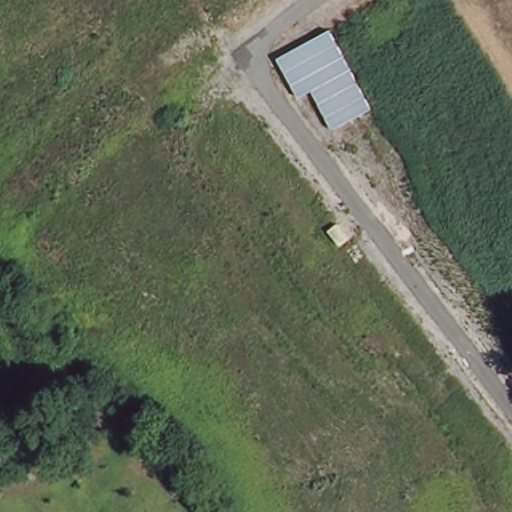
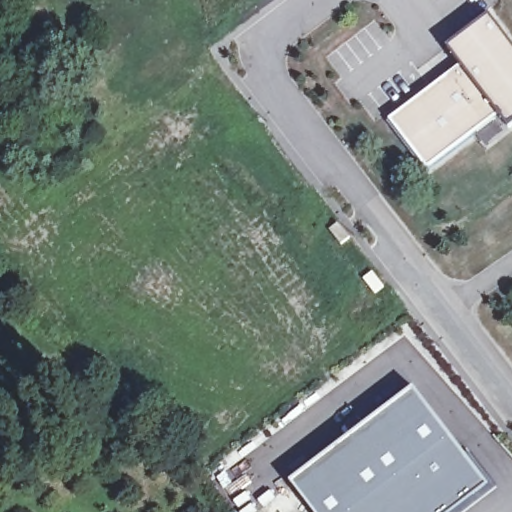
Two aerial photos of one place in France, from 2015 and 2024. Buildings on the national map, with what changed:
new [(512,45),(512,113),(459,38),(489,15),(512,45)]
new [(446,47),(459,38),(512,113),(512,124),(507,128),(497,115),(426,169),(389,120),(460,65),(446,47)]
new [(487,486),(454,512),(312,512),(291,484),(413,390),(487,486)]

